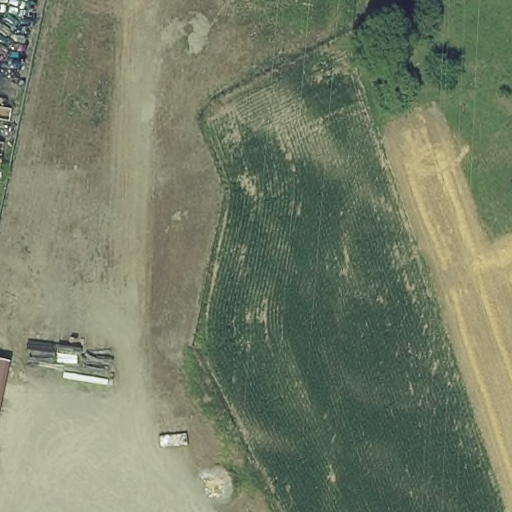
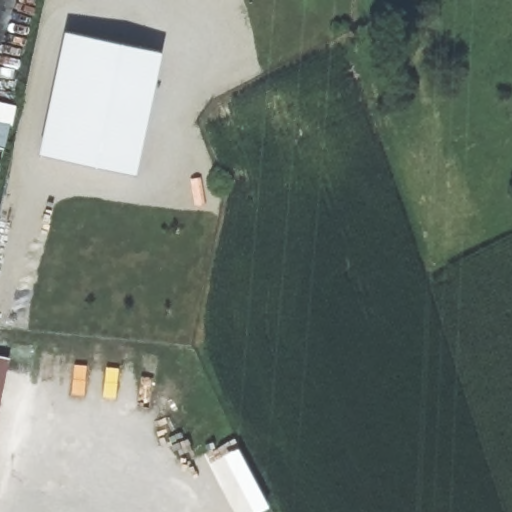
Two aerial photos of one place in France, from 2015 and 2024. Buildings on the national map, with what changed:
new [(42,156),(68,32),(87,36),(61,160),(42,156)]
new [(161,52),(135,175),(61,160),(87,36),(161,52)]
demolished [(0,418),(0,360),(12,363),(0,418)]
new [(12,364),(0,414),(0,362),(12,364)]

